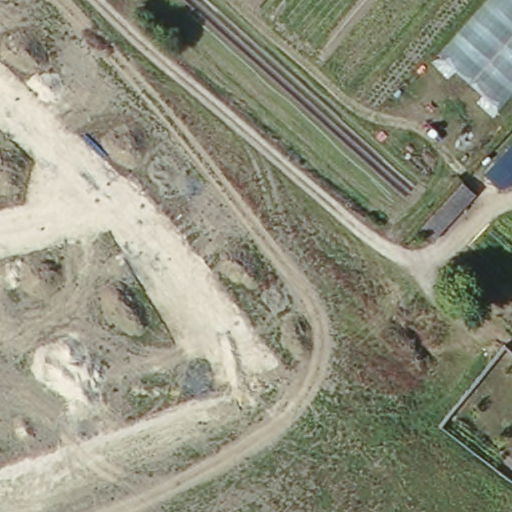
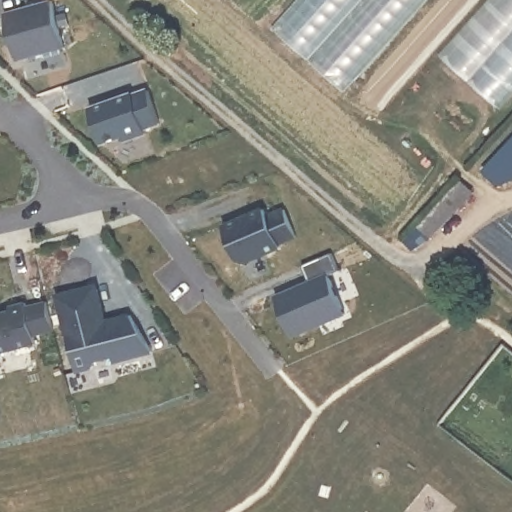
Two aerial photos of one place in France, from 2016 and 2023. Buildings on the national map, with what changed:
new [(52,0),(65,44),(18,57),(4,11),(39,0),(52,0)]
new [(271,25),(293,0),(429,0),(345,94),(271,25)]
unchanged [(479,0),(512,0),(512,94),(501,109),(432,52),(479,0)]
new [(90,106),(133,91),(134,92),(149,87),(161,120),(145,126),(147,130),(126,137),(124,133),(102,141),(90,106)]
unchanged [(486,173),(512,145),(512,184),(504,191),(486,173)]
new [(463,181),(475,191),(432,239),(416,250),(405,241),(463,181)]
new [(265,205),(268,212),(285,205),(297,232),(280,240),(282,244),(246,259),(239,257),(224,223),(265,205)]
new [(341,267),(331,272),(347,311),(295,334),(277,294),(312,279),(304,262),(333,250),(341,267)]
new [(96,277),(101,280),(107,305),(103,308),(109,313),(135,306),(157,343),(119,352),(117,347),(102,351),(98,358),(81,362),(61,287),(96,277)]
new [(14,303),(14,299),(29,295),(30,299),(50,293),(57,322),(38,327),(41,337),(0,347),(0,307),(14,303)]

